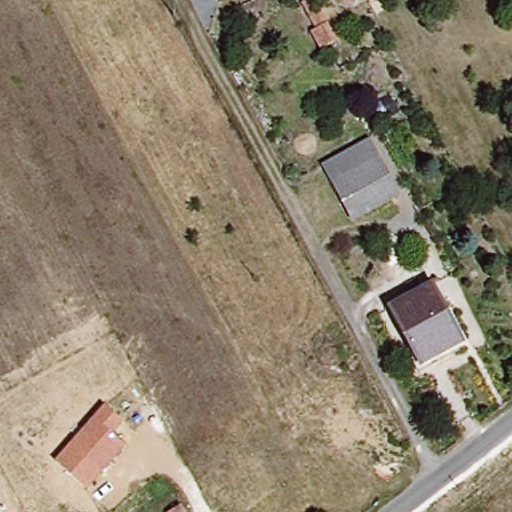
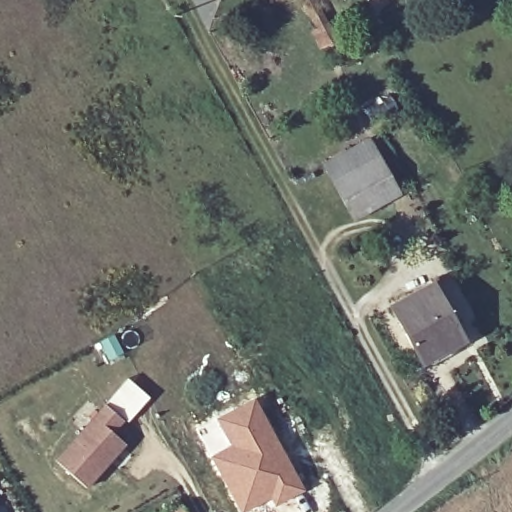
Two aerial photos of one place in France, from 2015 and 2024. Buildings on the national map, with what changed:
unchanged [(395,195),(351,220),(321,167),(366,142),(395,195)]
unchanged [(460,340),(416,363),(387,304),(428,282),(460,340)]
new [(127,376),(150,397),(127,422),(105,401),(127,376)]
new [(215,417),(254,396),(305,490),(272,506),(269,500),(244,512),(239,512),(209,455),(227,445),(215,417)]
unchanged [(126,421),(116,435),(127,445),(87,488),(54,458),(104,404),(126,421)]
new [(181,503),(186,512),(166,512),(166,511),(181,503)]

